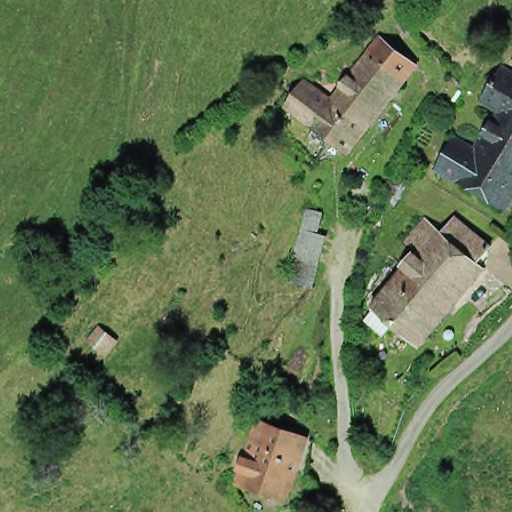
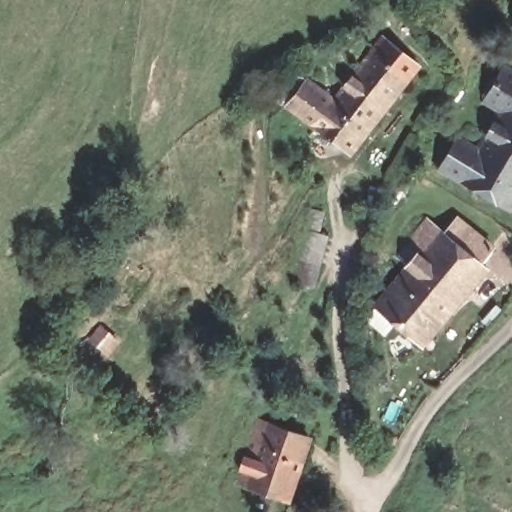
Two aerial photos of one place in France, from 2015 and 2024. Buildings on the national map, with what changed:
unchanged [(380,107),(351,88),(376,47),(405,67),(380,107)]
unchanged [(505,103),(491,94),(512,63),(512,122),(499,113),(505,103)]
unchanged [(355,147),(289,104),(307,76),(345,98),(351,88),(380,107),(355,147)]
unchanged [(445,160),(464,130),(481,141),(499,113),(512,122),(512,201),(445,160)]
unchanged [(445,227),(459,209),(494,237),(480,254),(487,260),(457,295),(409,256),(437,221),(445,227)]
unchanged [(457,295),(424,336),(376,296),(409,256),(457,295)]
unchanged [(315,430),(289,496),(239,473),(253,433),(267,441),(275,418),(315,430)]

